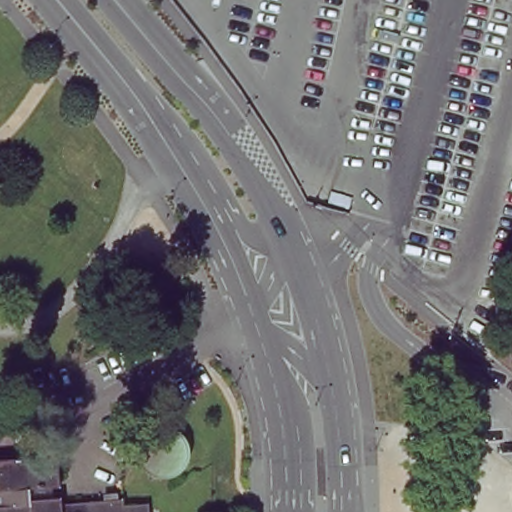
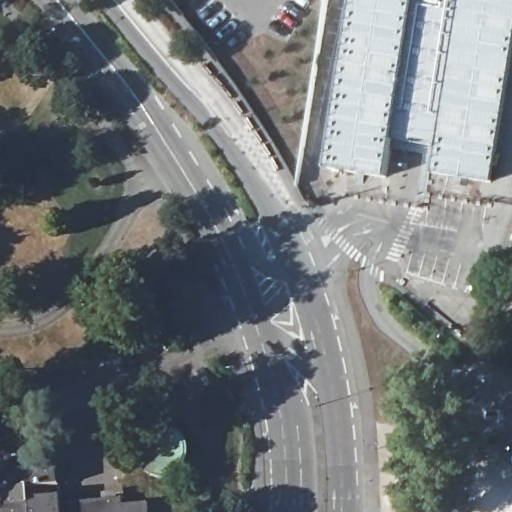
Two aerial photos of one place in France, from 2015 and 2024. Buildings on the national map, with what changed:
new [(316,0),(324,0),(323,7),(316,0)]
new [(433,172),(435,145),(393,139),(386,179),(327,167),(354,0),(512,0),(512,62),(492,183),(433,172)]
unchanged [(143,297),(143,258),(172,258),(173,297),(143,297)]
unchanged [(180,428),(183,432),(186,436),(189,441),(190,447),(190,453),(190,458),(187,463),(185,467),(181,472),(176,475),(170,477),(169,477),(163,478),(157,477),(151,476),(151,475),(146,473),(142,470),(140,465),(137,460),(135,455),(135,448),(136,442),(137,439),(140,433),(143,430),(148,427),(153,424),(157,423),(162,422),(168,422),(175,425),(180,428)]
unchanged [(25,490),(26,503),(58,501),(58,507),(120,502),(120,510),(145,508),(145,512),(0,512),(0,462),(55,458),(57,488),(25,490)]

